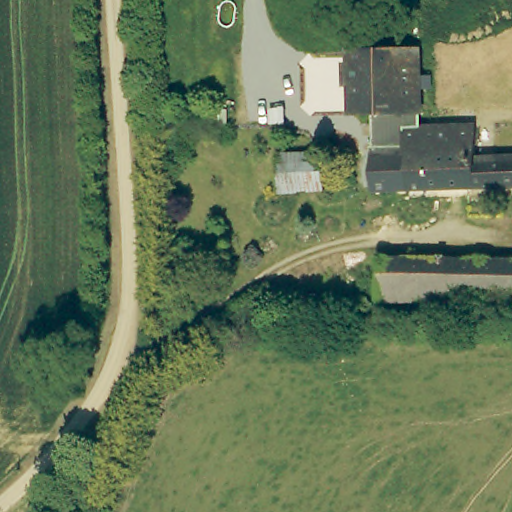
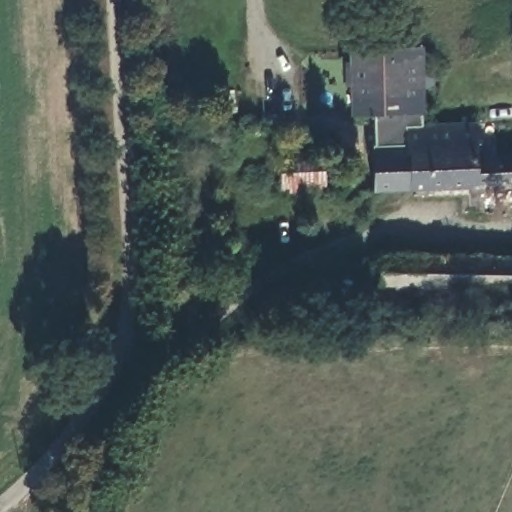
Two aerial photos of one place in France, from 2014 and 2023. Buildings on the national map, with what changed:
unchanged [(422,127),(407,127),(407,147),(406,199),(374,200),(374,147),(374,114),(352,114),(352,57),(353,46),(422,46),(422,74),(434,74),(434,87),(422,87),(422,114),(422,127)]
unchanged [(479,127),(479,159),(512,159),(512,195),(406,199),(407,147),(407,127),(422,127),(479,127)]
unchanged [(323,197),(284,197),(284,156),(323,156),(323,197)]
unchanged [(382,268),(512,267),(512,311),(383,312),(382,268)]

